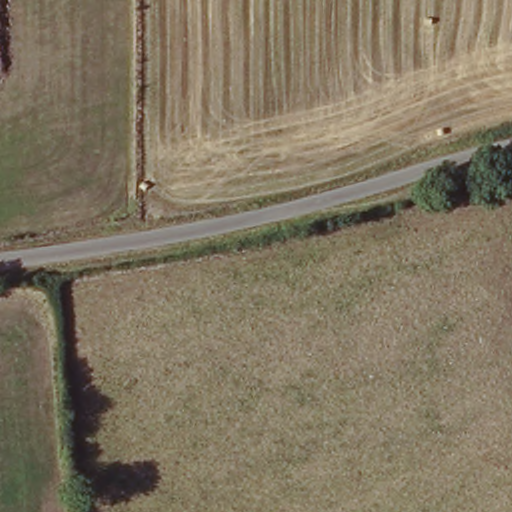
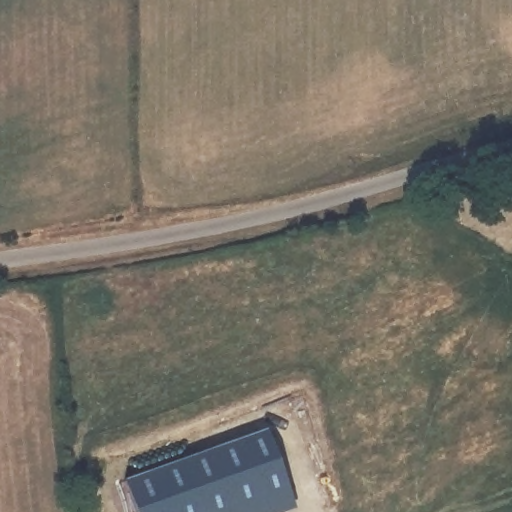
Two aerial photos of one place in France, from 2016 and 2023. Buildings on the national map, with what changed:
new [(268,428),(296,506),(279,512),(143,512),(131,477),(268,428)]

